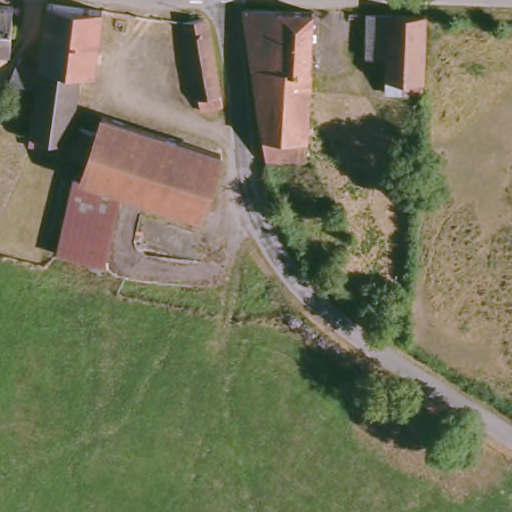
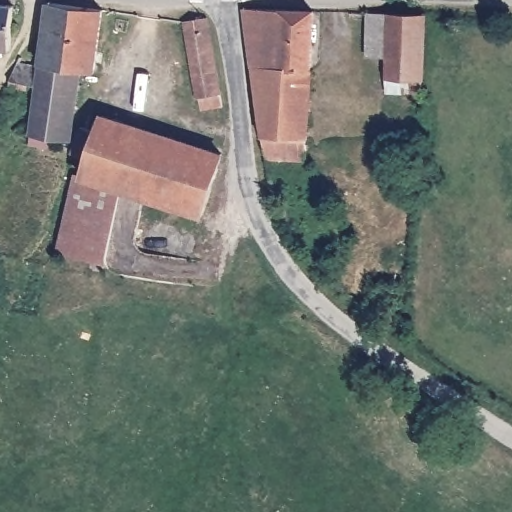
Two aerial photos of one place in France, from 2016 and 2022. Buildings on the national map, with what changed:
unchanged [(18,49),(0,48),(0,4),(20,5),(18,49)]
unchanged [(100,71),(86,70),(77,138),(59,138),(59,148),(37,146),(44,89),(14,86),(23,64),(46,69),(52,4),(107,10),(100,71)]
unchanged [(312,158),(272,162),(267,139),(250,13),(319,15),(312,158)]
unchanged [(229,108),(209,109),(207,98),(205,99),(189,22),(210,16),(229,108)]
unchanged [(407,84),(407,97),(387,97),(388,62),(367,61),(369,18),(389,19),(427,20),(424,83),(407,84)]
unchanged [(207,216),(130,192),(111,267),(59,252),(82,176),(90,179),(96,159),(80,154),(87,129),(104,133),(110,118),(227,154),(207,216)]

